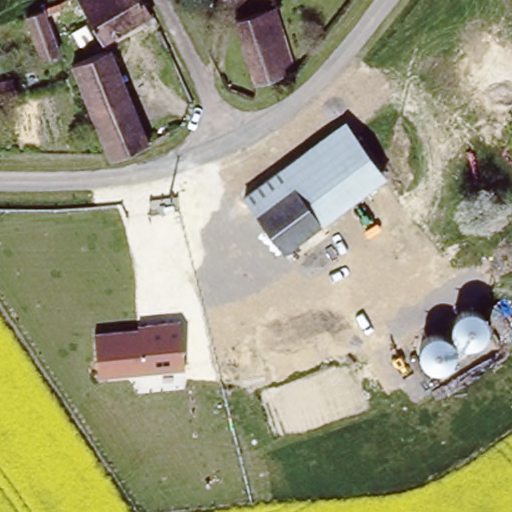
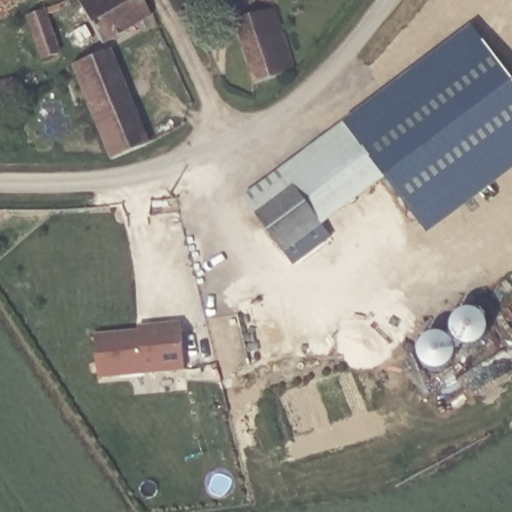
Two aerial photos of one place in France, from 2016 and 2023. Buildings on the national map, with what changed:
unchanged [(105,43),(79,0),(143,0),(153,14),(105,43)]
unchanged [(236,17),(274,3),(293,63),(295,71),(281,76),(256,84),(236,17)]
unchanged [(28,15),(45,9),(64,56),(46,63),(28,15)]
new [(386,179),(345,125),(344,121),(472,25),(512,77),(512,168),(428,233),(386,179)]
unchanged [(109,51),(150,141),(112,159),(107,148),(71,66),(109,51)]
unchanged [(0,94),(0,80),(13,75),(20,92),(2,100),(0,94)]
unchanged [(345,125),(386,179),(285,254),(244,200),(345,125)]
unchanged [(188,367),(101,378),(96,330),(141,325),(141,322),(183,318),(188,367)]

